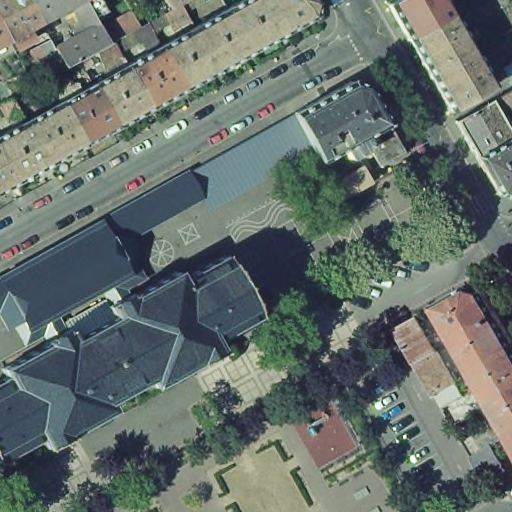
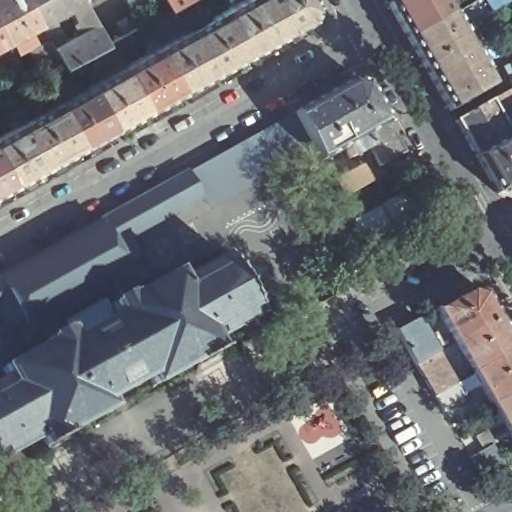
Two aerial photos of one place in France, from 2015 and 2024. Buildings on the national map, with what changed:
unchanged [(13,40),(0,17),(0,0),(32,0),(45,23),(13,40)]
unchanged [(89,31),(75,6),(45,23),(32,0),(90,0),(104,24),(89,31)]
unchanged [(191,0),(185,4),(192,16),(175,26),(169,14),(175,10),(170,0),(191,0)]
unchanged [(232,9),(247,0),(271,0),(289,32),(255,51),(232,9)]
unchanged [(317,16),(289,32),(271,0),(320,0),(322,2),(317,16)]
unchanged [(394,0),(443,0),(452,15),(409,40),(387,4),(394,0)]
unchanged [(232,9),(255,51),(222,70),(198,27),(232,9)]
unchanged [(58,75),(57,74),(49,79),(43,68),(52,64),(43,47),(55,40),(59,47),(89,31),(104,24),(106,29),(137,12),(144,27),(152,22),(158,34),(143,42),(137,31),(118,41),(127,56),(110,66),(101,50),(84,60),(90,70),(72,80),(67,70),(58,75)]
unchanged [(409,40),(452,15),(472,50),(429,75),(409,40)]
unchanged [(0,48),(0,17),(13,40),(0,48)]
unchanged [(189,89),(165,45),(198,27),(222,70),(189,89)]
unchanged [(165,45),(189,89),(155,107),(131,65),(165,45)]
unchanged [(429,75),(472,50),(493,86),(450,111),(429,75)]
unchanged [(511,57),(512,57),(512,59),(511,57)]
unchanged [(122,126),(97,83),(131,65),(155,107),(122,126)]
unchanged [(320,161),(314,151),(293,114),(351,81),(365,85),(405,152),(380,166),(369,148),(349,159),(344,149),(321,161),(320,161)]
unchanged [(97,83),(122,126),(88,145),(64,102),(97,83)]
unchanged [(497,189),(455,116),(491,95),(512,83),(512,100),(499,108),(512,131),(512,193),(497,189)]
unchanged [(12,119),(4,104),(7,102),(17,97),(25,112),(12,119)]
unchanged [(55,163),(30,120),(64,102),(88,145),(55,163)]
unchanged [(314,151),(209,210),(202,197),(187,172),(293,114),(314,151)]
unchanged [(21,182),(0,144),(0,137),(30,120),(55,163),(22,181),(21,182)]
unchanged [(0,194),(0,144),(21,182),(0,194)]
unchanged [(362,166),(370,182),(342,199),(334,182),(362,166)]
unchanged [(129,237),(138,255),(124,263),(100,221),(100,220),(140,199),(187,172),(202,197),(129,237)]
unchanged [(407,185),(428,224),(401,239),(380,200),(407,185)]
unchanged [(132,296),(176,271),(181,280),(225,255),(259,316),(215,340),(222,353),(199,365),(197,361),(152,386),(148,378),(127,390),(107,400),(112,409),(67,433),(70,437),(47,450),(40,437),(0,460),(0,380),(7,376),(2,368),(46,343),(45,343),(47,340),(39,325),(29,330),(22,319),(0,280),(0,276),(100,220),(100,221),(124,263),(130,274),(119,280),(127,295),(128,295),(132,295),(132,296)]
unchanged [(8,327),(0,313),(0,280),(22,319),(8,327)]
unchanged [(436,308),(470,289),(485,293),(499,317),(455,341),(436,308)]
unchanged [(300,301),(310,295),(317,306),(305,312),(300,301)]
unchanged [(455,341),(499,317),(512,340),(512,351),(473,373),(455,341)]
unchanged [(442,409),(435,395),(434,396),(434,395),(415,365),(406,348),(396,331),(419,318),(439,352),(456,382),(464,396),(442,409)]
unchanged [(473,373),(512,351),(512,393),(491,404),(473,373)]
unchanged [(470,457),(484,450),(475,437),(502,422),(491,404),(512,393),(512,441),(509,435),(492,445),(507,471),(485,484),(470,457)]

